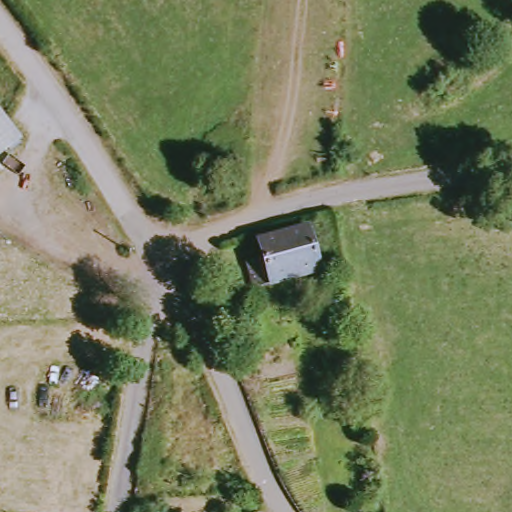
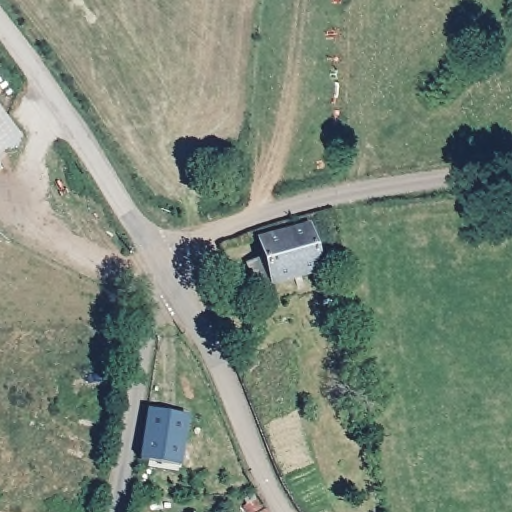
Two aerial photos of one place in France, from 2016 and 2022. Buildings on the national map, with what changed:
unchanged [(0,157),(0,103),(26,137),(0,157)]
unchanged [(264,290),(256,263),(269,258),(266,241),(316,225),(329,270),(264,290)]
new [(149,410),(188,417),(181,467),(139,461),(149,410)]
unchanged [(260,512),(262,511),(263,512),(260,512)]

